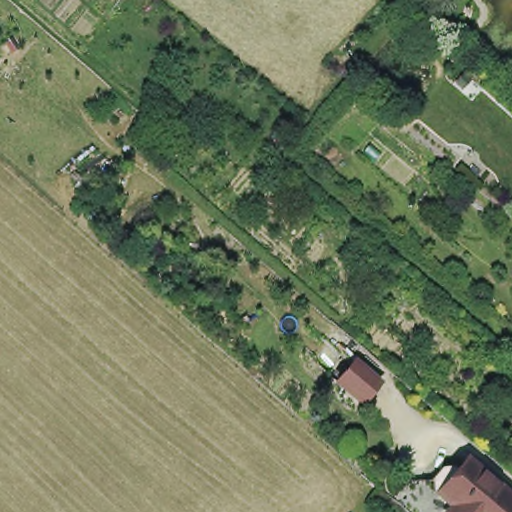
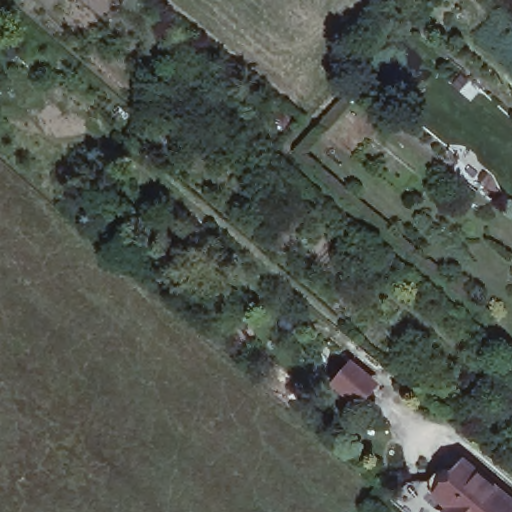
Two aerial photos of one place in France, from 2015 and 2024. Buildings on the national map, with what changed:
unchanged [(343,357),(369,378),(353,397),(328,375),(343,357)]
unchanged [(426,484),(466,449),(512,497),(512,512),(436,512),(443,502),(426,484)]

